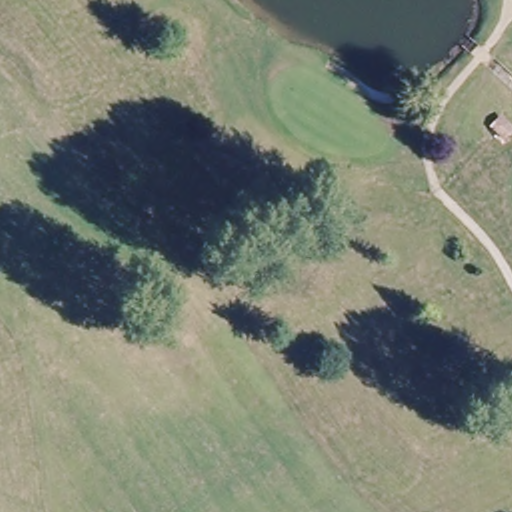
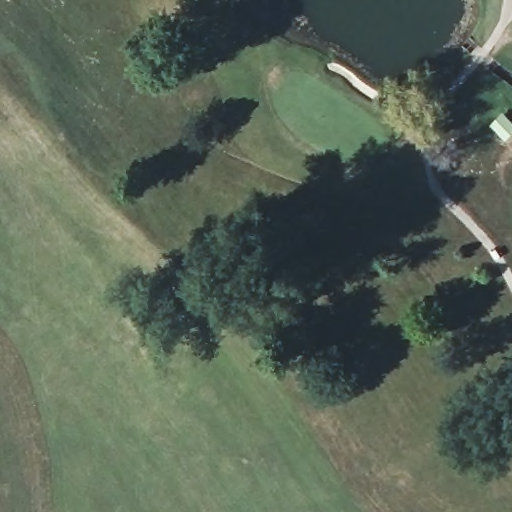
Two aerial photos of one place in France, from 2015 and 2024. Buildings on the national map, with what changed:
unchanged [(499,104),(512,116),(512,131),(504,139),(484,119),(499,104)]

